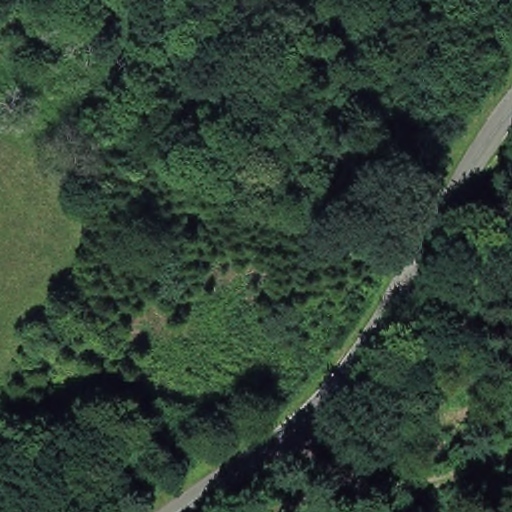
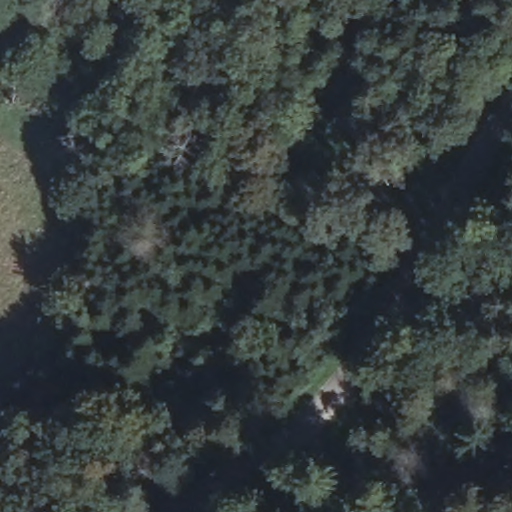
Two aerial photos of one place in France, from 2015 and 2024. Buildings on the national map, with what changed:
[]

